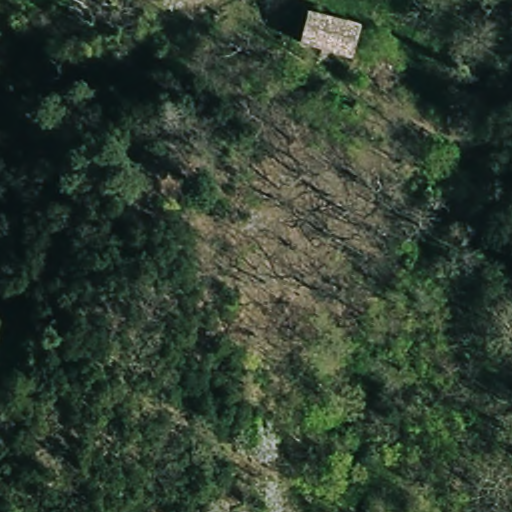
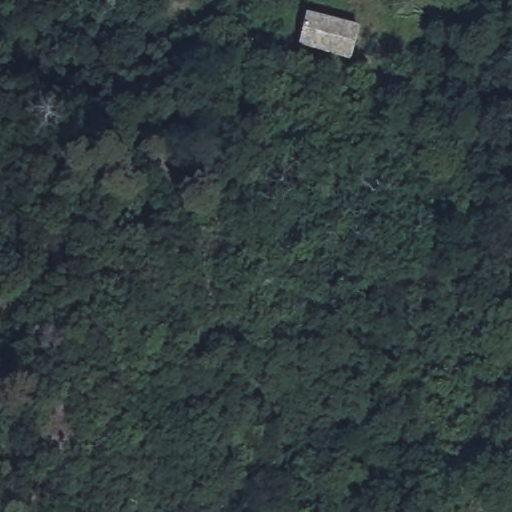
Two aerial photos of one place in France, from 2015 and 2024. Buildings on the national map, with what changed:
unchanged [(357,25),(348,55),(298,41),(306,12),(357,25)]

